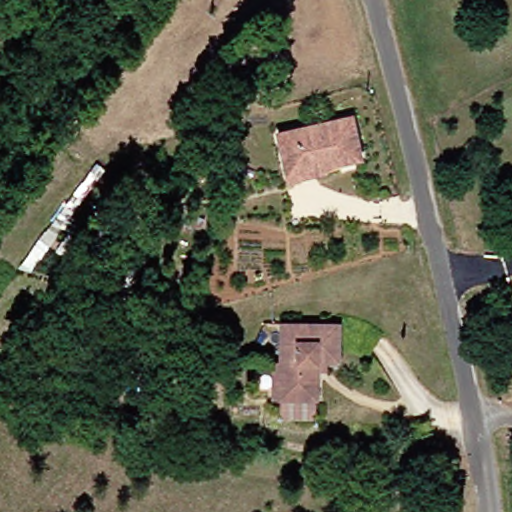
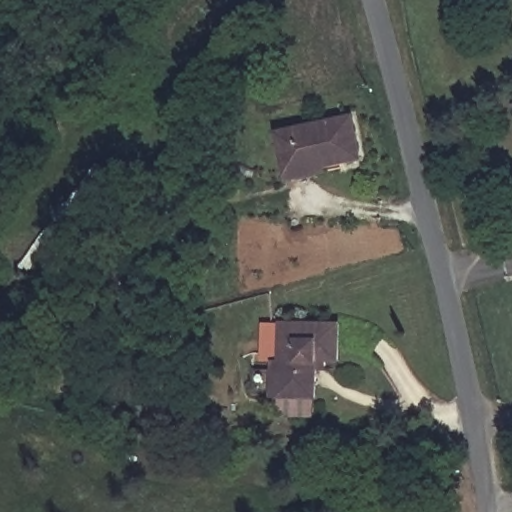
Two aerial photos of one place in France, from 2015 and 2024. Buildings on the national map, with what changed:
unchanged [(287,179),(285,168),(278,142),(349,124),(358,155),(323,163),(325,170),(287,179)]
unchanged [(279,421),(278,397),(269,397),(270,363),(278,363),(278,325),(340,325),(340,363),(315,363),(313,422),(279,421)]

